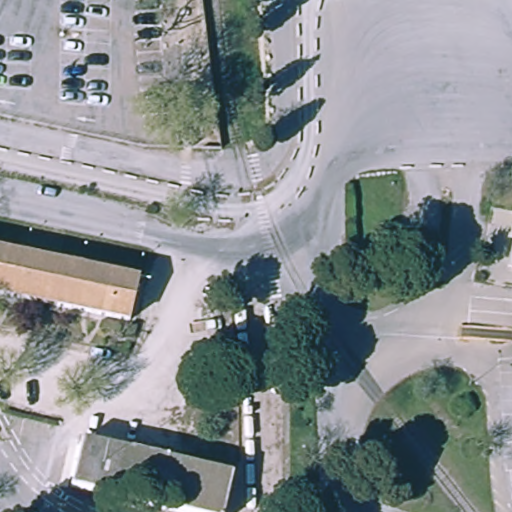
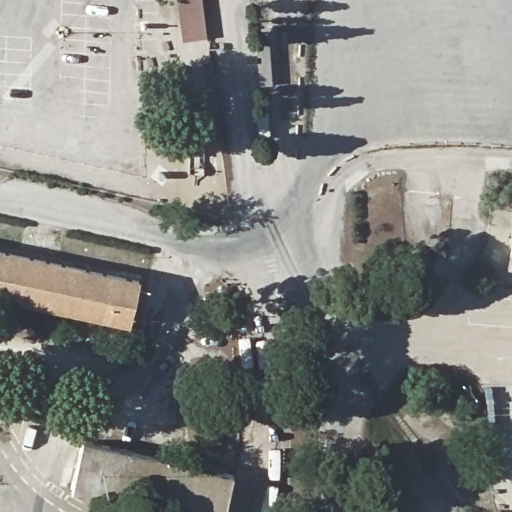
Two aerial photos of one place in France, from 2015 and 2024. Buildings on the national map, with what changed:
new [(178,0),(203,0),(208,38),(183,41),(178,0)]
unchanged [(508,262),(512,243),(512,263),(508,262)]
unchanged [(130,316),(0,289),(0,247),(140,277),(130,316)]
unchanged [(83,440),(234,475),(225,512),(172,512),(140,504),(119,500),(72,489),(83,440)]

